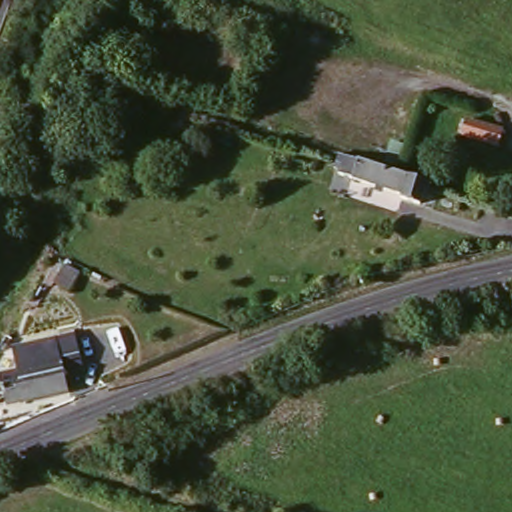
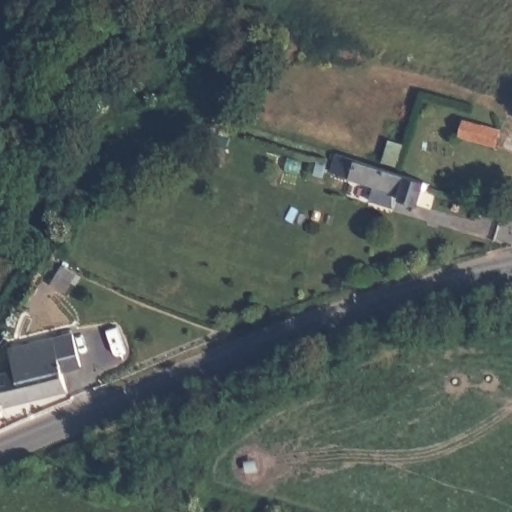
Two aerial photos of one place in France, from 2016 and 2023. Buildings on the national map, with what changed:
unchanged [(461,138),(466,122),(500,134),(495,149),(461,138)]
unchanged [(429,184),(421,205),(406,201),(407,198),(343,177),(346,166),(340,164),(343,156),(429,184)]
unchanged [(77,279),(65,297),(51,288),(61,270),(77,279)]
unchanged [(62,366),(67,386),(5,401),(0,381),(0,371),(16,367),(11,346),(35,340),(72,332),(80,363),(70,364),(62,366)]

